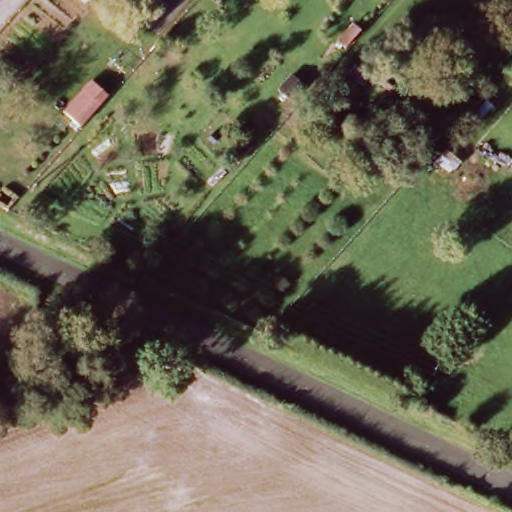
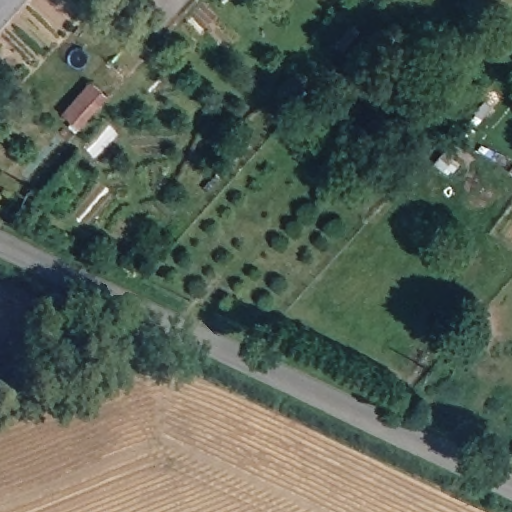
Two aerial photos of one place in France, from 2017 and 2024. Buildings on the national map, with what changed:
unchanged [(338,39),(332,35),(347,18),(353,24),(345,32),(338,39)]
unchanged [(372,53),(363,63),(352,53),(360,44),(372,53)]
unchanged [(300,79),(287,93),(275,84),(288,68),(300,79)]
unchanged [(97,99),(75,122),(62,109),(82,86),(97,99)]

